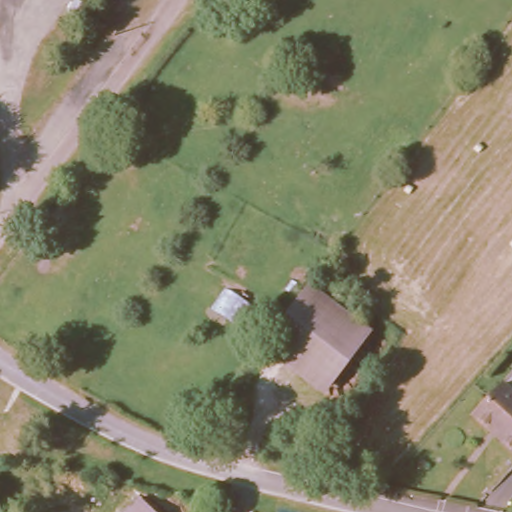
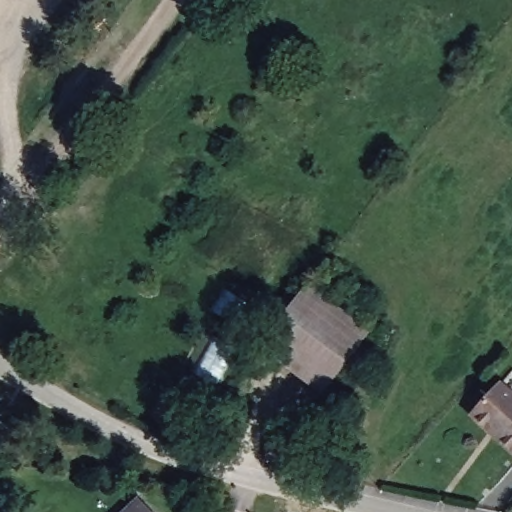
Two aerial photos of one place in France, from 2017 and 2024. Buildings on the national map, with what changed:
unchanged [(330,387),(265,348),(306,287),(370,332),(330,387)]
unchanged [(511,458),(467,419),(494,390),(512,406),(512,456),(511,458)]
unchanged [(117,512),(133,496),(149,512),(117,512)]

